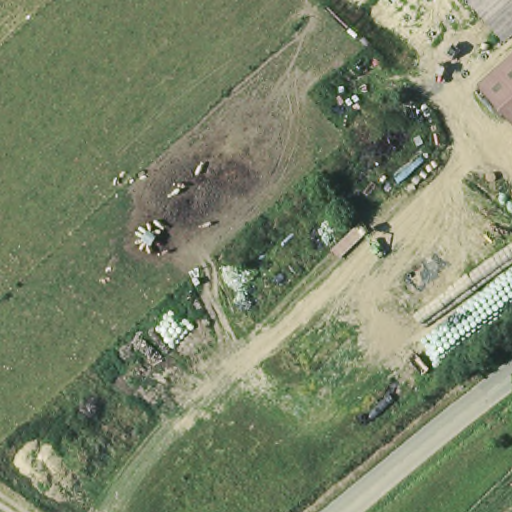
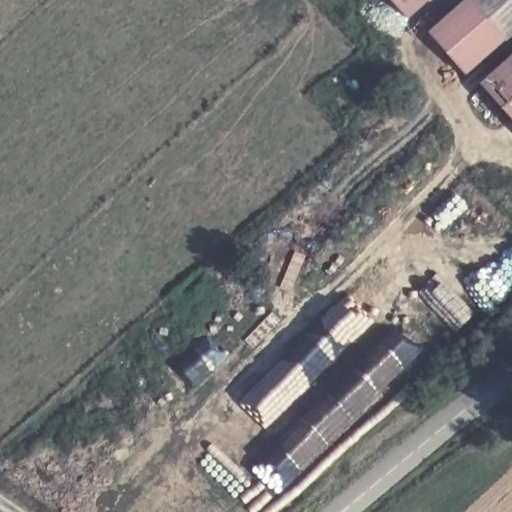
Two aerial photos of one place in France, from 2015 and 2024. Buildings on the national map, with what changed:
new [(393,0),(431,0),(411,19),(393,0)]
unchanged [(467,5),(473,0),(512,0),(512,32),(499,44),(467,5)]
new [(474,14),(499,44),(503,46),(465,78),(428,34),(464,3),(467,5),(474,14)]
unchanged [(512,61),(512,128),(479,92),(512,61)]

